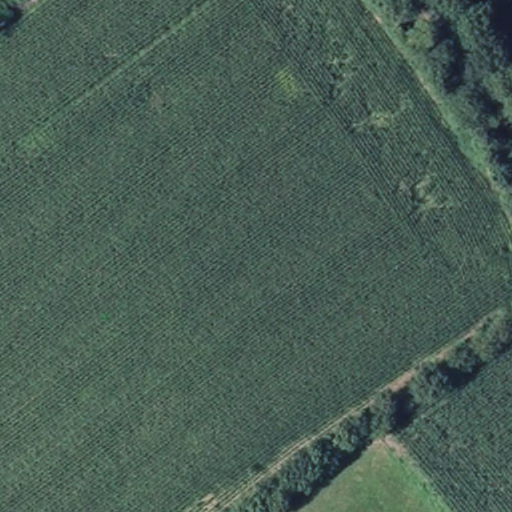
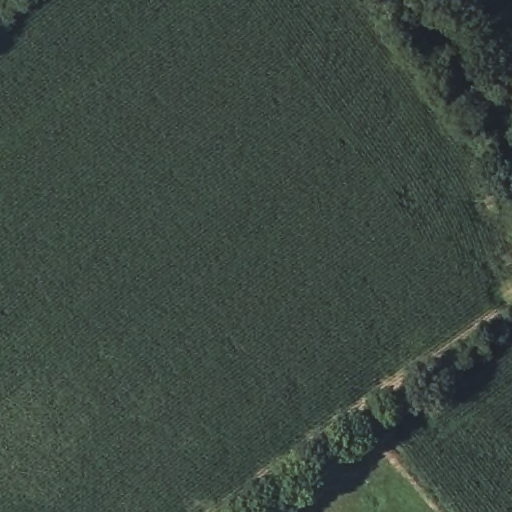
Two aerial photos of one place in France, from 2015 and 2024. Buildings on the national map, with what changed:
[]

